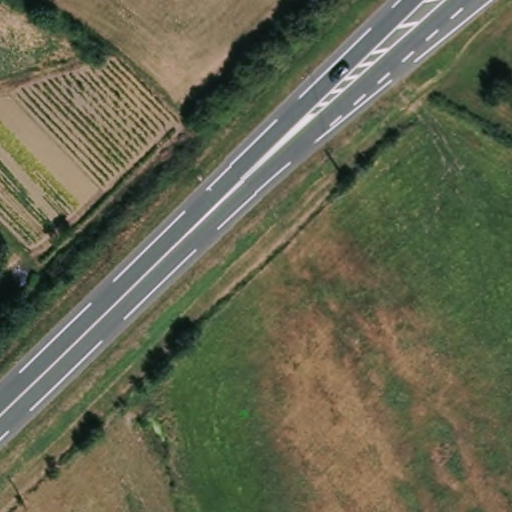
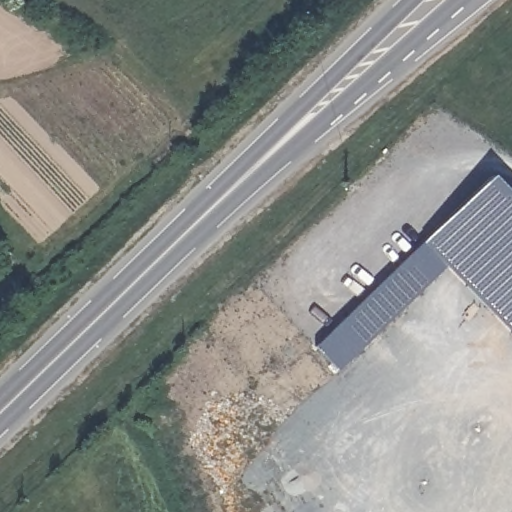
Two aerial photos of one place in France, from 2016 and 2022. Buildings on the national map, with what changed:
new [(491,178),(512,200),(512,334),(447,266),(338,371),(316,350),(491,178)]

